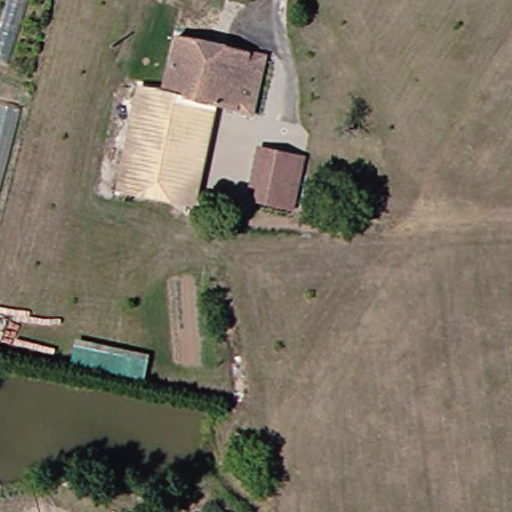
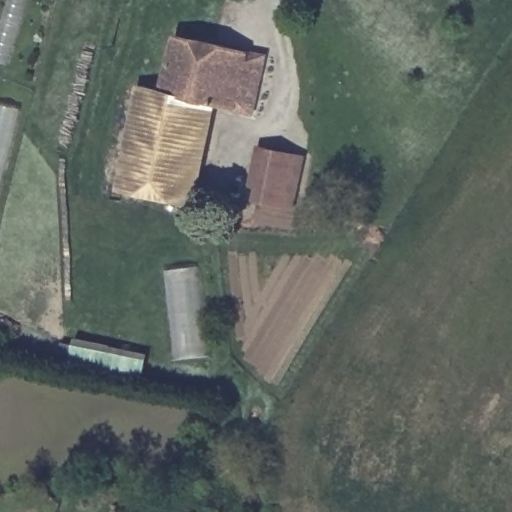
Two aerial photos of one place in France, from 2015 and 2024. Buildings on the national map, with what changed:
unchanged [(201,110),(190,171),(117,157),(129,96),(159,101),(167,41),(237,55),(227,114),(201,110)]
unchanged [(256,59),(246,116),(227,114),(237,55),(256,59)]
unchanged [(293,158),(285,212),(249,207),(251,190),(242,188),(249,150),(293,158)]
unchanged [(184,210),(111,197),(117,157),(190,171),(184,210)]
new [(166,271),(199,267),(209,358),(175,362),(166,271)]
unchanged [(151,353),(146,380),(71,364),(77,338),(151,353)]

